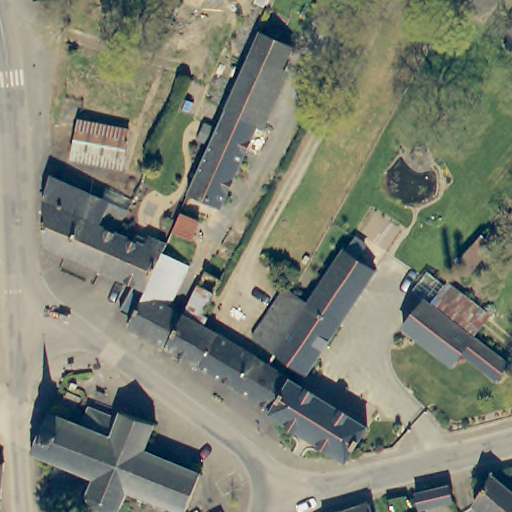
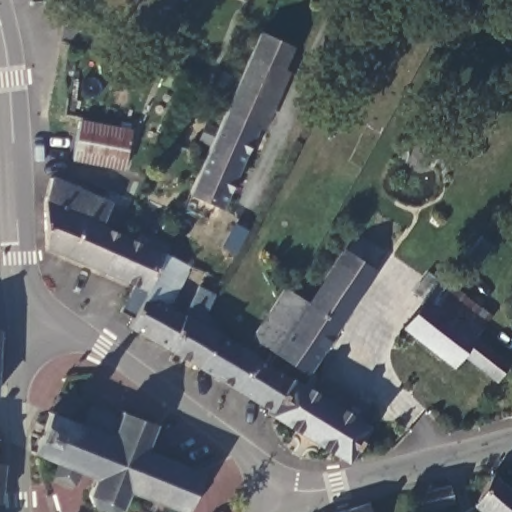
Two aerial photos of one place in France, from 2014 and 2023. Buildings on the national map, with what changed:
unchanged [(224,107),(259,29),(292,44),(257,122),(224,107)]
unchanged [(512,41),(512,43),(511,42),(512,41)]
unchanged [(220,206),(185,192),(224,107),(257,122),(220,206)]
unchanged [(80,119),(130,129),(122,167),(72,158),(80,119)]
unchanged [(105,266),(101,275),(47,252),(45,203),(50,183),(101,205),(106,194),(130,205),(126,215),(116,237),(105,266)]
unchanged [(175,229),(184,212),(200,220),(192,237),(175,229)]
unchanged [(467,249),(480,234),(491,244),(470,270),(458,260),(467,249)]
unchanged [(121,317),(135,289),(101,275),(105,266),(116,237),(146,250),(150,242),(166,249),(163,257),(146,294),(148,294),(134,322),(121,317)]
unchanged [(343,253),(373,273),(338,327),(308,307),(343,253)]
unchanged [(130,331),(134,322),(148,294),(146,294),(163,257),(189,268),(168,312),(184,319),(206,276),(221,283),(213,300),(206,315),(205,318),(209,320),(203,331),(216,339),(197,371),(166,352),(153,344),(130,331)]
unchanged [(280,280),(280,275),(283,271),(287,269),(290,270),(295,272),(296,277),(292,285),(288,287),(282,283),(280,280)]
unchanged [(447,286),(487,318),(472,338),(431,306),(447,286)]
unchanged [(252,342),(285,292),(293,298),(308,307),(276,358),(252,342)]
unchanged [(495,383),(461,357),(451,369),(402,331),(425,302),(431,306),(472,338),(498,359),(508,367),(495,383)]
unchanged [(276,358),(308,307),(338,327),(306,377),(298,372),(276,358)]
unchanged [(290,384),(271,415),(197,371),(216,339),(268,371),(290,384)]
unchanged [(269,419),(271,415),(290,384),(366,432),(345,467),(269,419)]
unchanged [(79,404),(71,419),(51,409),(60,394),(79,404)]
unchanged [(56,466),(32,456),(29,457),(27,452),(30,450),(44,417),(42,414),(46,412),(48,416),(79,429),(86,412),(114,423),(116,417),(115,414),(119,413),(122,417),(147,427),(151,426),(152,431),(149,432),(140,454),(166,465),(167,462),(171,464),(170,467),(194,476),(198,475),(200,479),(195,481),(183,512),(170,512),(155,506),(154,508),(150,507),(150,504),(128,495),(122,497),(116,511),(114,512),(100,512),(90,508),(86,496),(91,483),(90,479),(76,474),(70,488),(50,480),(56,466)]
unchanged [(1,505),(0,505),(0,466),(6,466),(1,505)]
unchanged [(482,473),(512,497),(512,512),(473,512),(463,504),(482,473)]
unchanged [(448,486),(451,501),(417,508),(415,493),(448,486)]
unchanged [(374,512),(356,512),(372,507),(374,512)]

